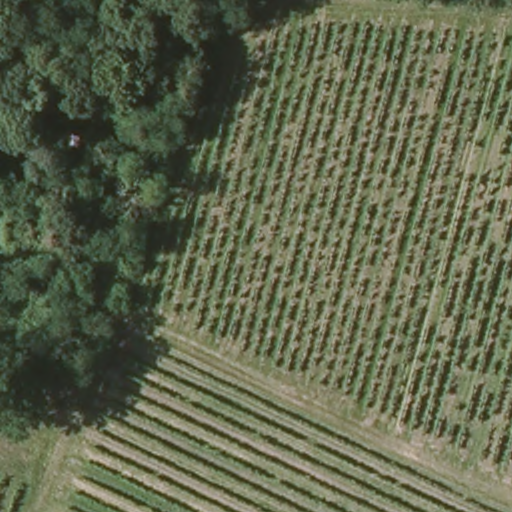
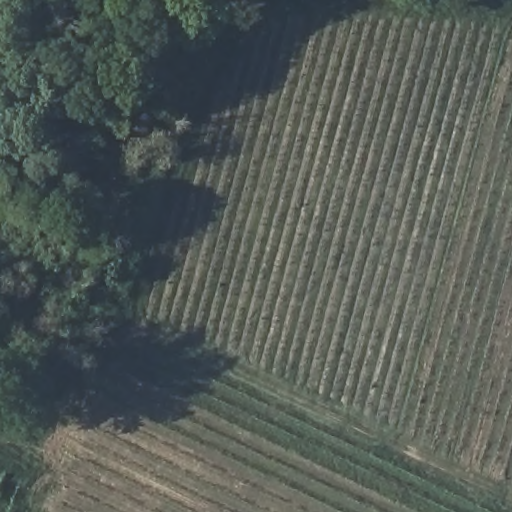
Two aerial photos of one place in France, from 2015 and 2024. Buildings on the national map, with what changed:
[]

